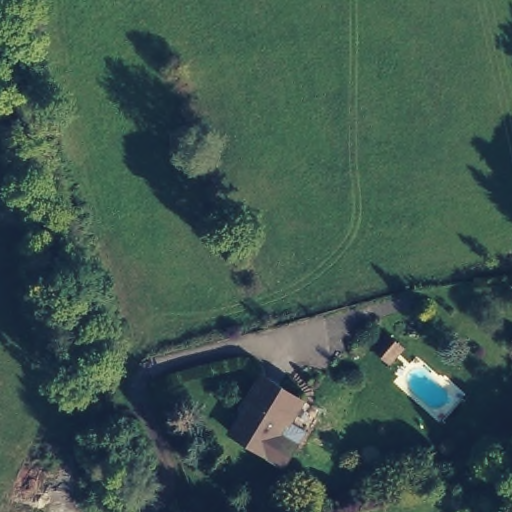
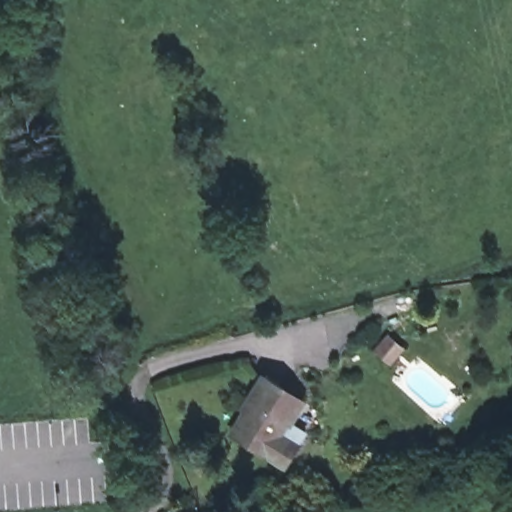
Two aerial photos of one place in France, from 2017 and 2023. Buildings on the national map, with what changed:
unchanged [(403,348),(391,361),(379,350),(390,337),(403,348)]
unchanged [(300,402),(286,423),(301,432),(281,466),(227,433),(242,410),(240,408),(259,376),(300,402)]

